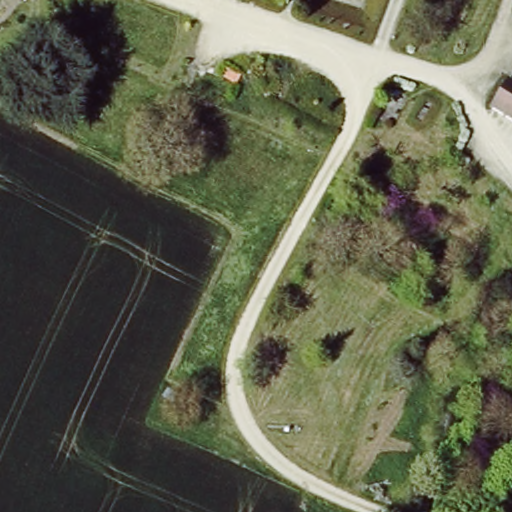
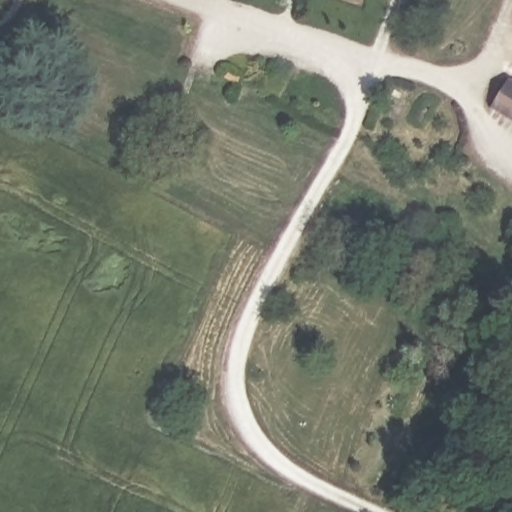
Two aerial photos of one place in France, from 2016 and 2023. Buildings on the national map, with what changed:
unchanged [(286,2),(281,0),(287,0),(286,2)]
unchanged [(512,76),(512,117),(494,106),(512,76)]

